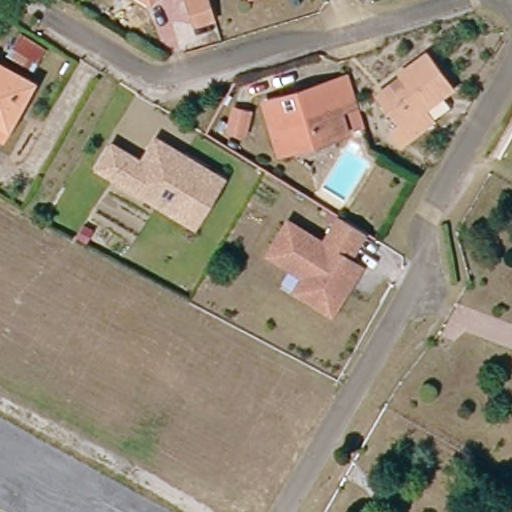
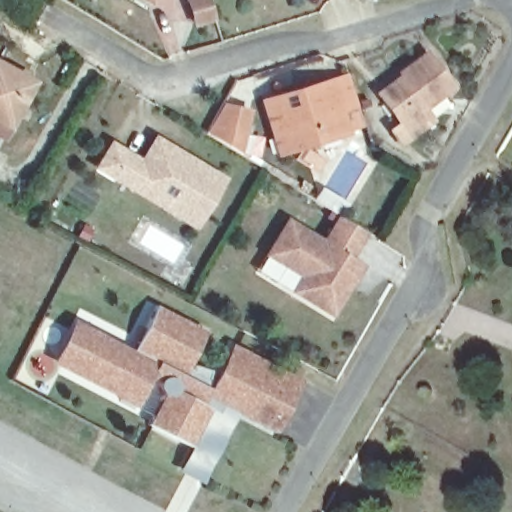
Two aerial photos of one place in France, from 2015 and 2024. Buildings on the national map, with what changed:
unchanged [(148,0),(152,0),(151,2),(148,0)]
unchanged [(188,0),(209,0),(215,17),(196,23),(188,0)]
unchanged [(47,49),(36,71),(6,58),(18,35),(47,49)]
unchanged [(414,109),(424,121),(392,145),(381,131),(390,124),(368,94),(392,76),(390,73),(416,53),(442,88),(414,109)]
unchanged [(0,60),(36,79),(8,131),(0,127),(0,60)]
unchanged [(274,155),(258,101),(328,81),(346,75),(355,106),(337,111),(343,134),(274,155)]
new [(206,134),(223,101),(251,110),(242,155),(206,134)]
unchanged [(184,221),(98,169),(111,146),(142,164),(156,140),(221,179),(208,201),(193,226),(184,221)]
unchanged [(359,263),(353,273),(328,314),(291,291),(300,276),(264,254),(284,221),(320,243),(336,216),(340,219),(361,231),(347,256),(359,263)]
unchanged [(86,243),(79,238),(85,226),(94,231),(86,243)]
new [(274,433),(238,414),(203,485),(178,473),(191,446),(148,425),(164,394),(161,391),(159,387),(158,382),(150,379),(136,407),(53,363),(74,321),(132,351),(156,307),(206,331),(187,368),(212,381),(233,345),(301,380),(274,433)]

